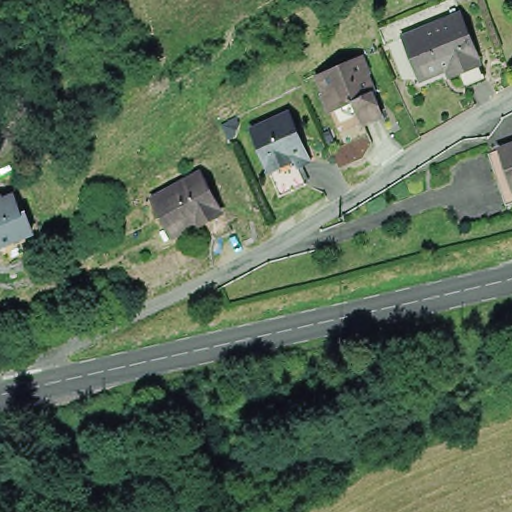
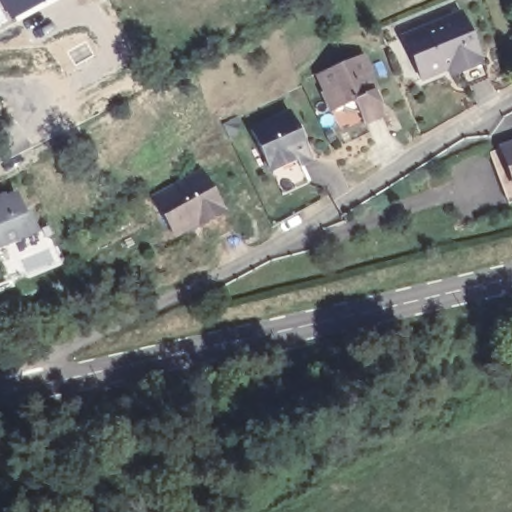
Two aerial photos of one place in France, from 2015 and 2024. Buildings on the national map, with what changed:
new [(27,13),(6,22),(0,9),(0,0),(50,0),(27,13)]
unchanged [(479,59),(476,60),(479,68),(451,80),(448,73),(425,82),(407,39),(461,17),(479,59)]
unchanged [(364,120),(363,116),(354,96),(335,103),(327,83),(330,82),(324,68),(364,52),(371,68),(364,71),(372,89),(374,88),(382,107),(384,111),(364,120)]
unchanged [(253,128),(291,112),(312,160),(301,165),(308,183),(281,195),(270,168),(253,128)]
unchanged [(512,159),(507,144),(512,143),(512,159)]
unchanged [(174,234),(154,197),(202,172),(222,209),(234,230),(220,238),(208,216),(174,234)]
unchanged [(3,189),(5,194),(15,189),(23,208),(28,205),(37,229),(0,246),(0,191),(3,189)]
unchanged [(203,459),(223,453),(223,454),(231,452),(256,444),(259,453),(234,461),(206,469),(203,459)]

